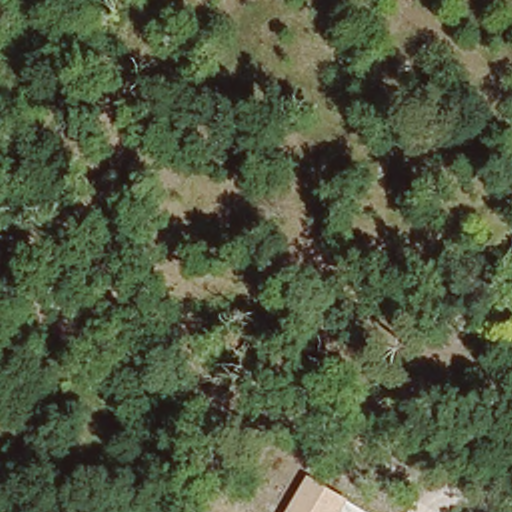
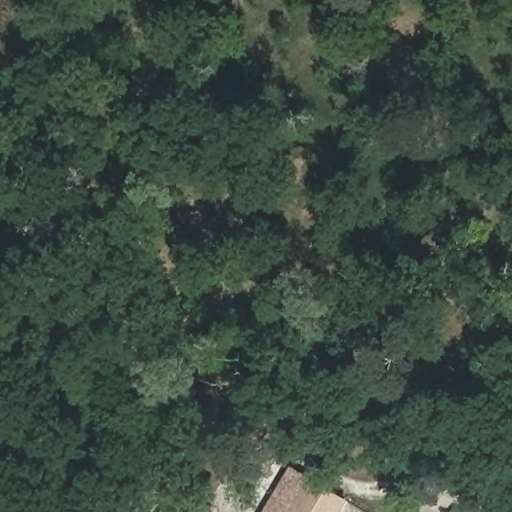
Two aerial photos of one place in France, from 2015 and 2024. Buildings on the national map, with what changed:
unchanged [(349,499),(341,512),(286,512),(308,475),(349,499)]

